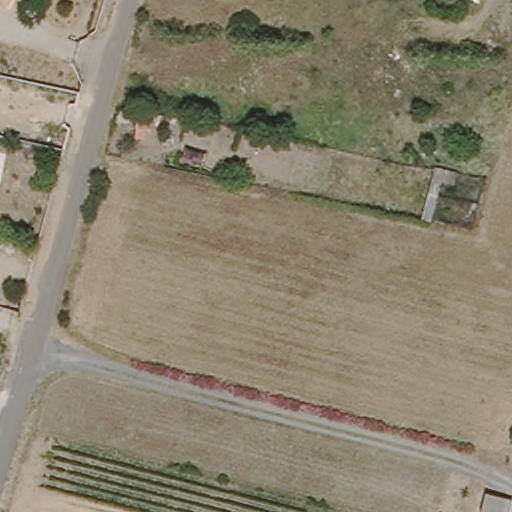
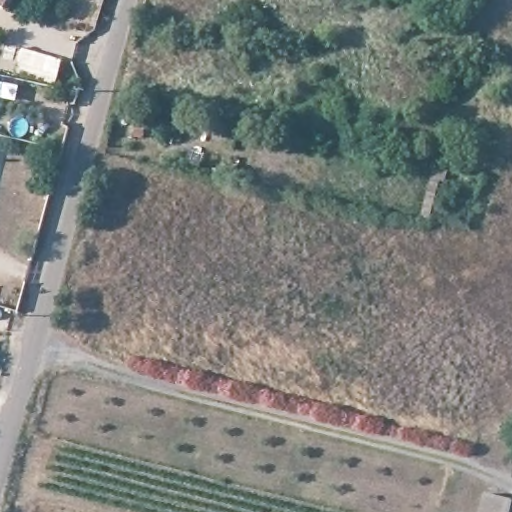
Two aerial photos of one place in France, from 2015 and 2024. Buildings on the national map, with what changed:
unchanged [(0,0),(12,0),(6,15),(0,13),(0,0)]
unchanged [(164,117),(160,133),(139,129),(142,112),(164,117)]
unchanged [(512,500),(509,512),(488,512),(492,497),(512,500)]

